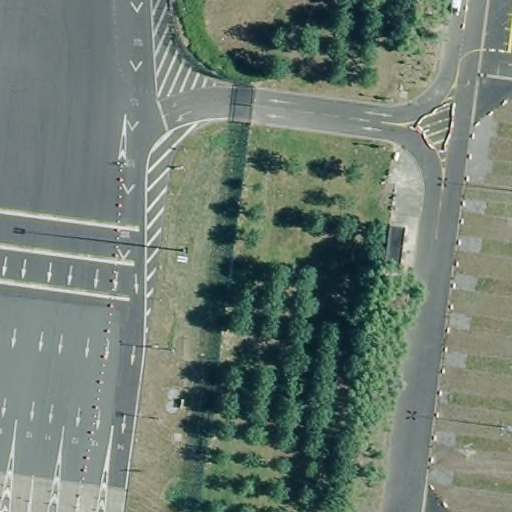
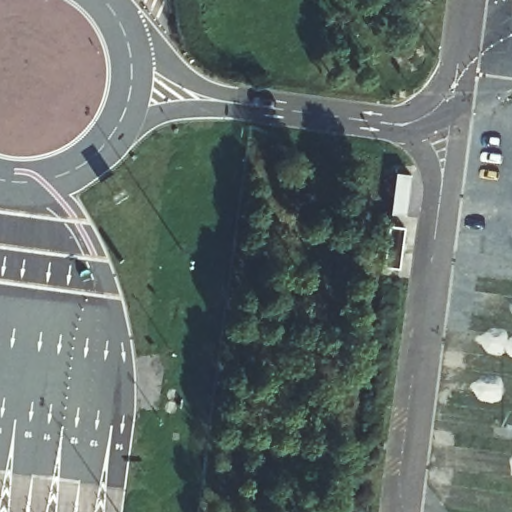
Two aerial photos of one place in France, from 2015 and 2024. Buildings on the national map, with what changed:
unchanged [(390,226),(404,227),(398,268),(384,266),(390,226)]

